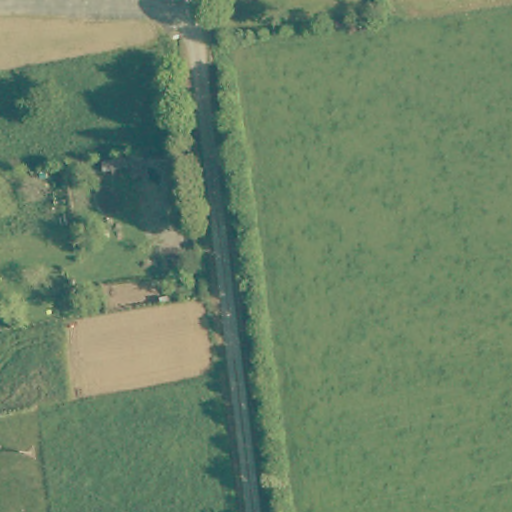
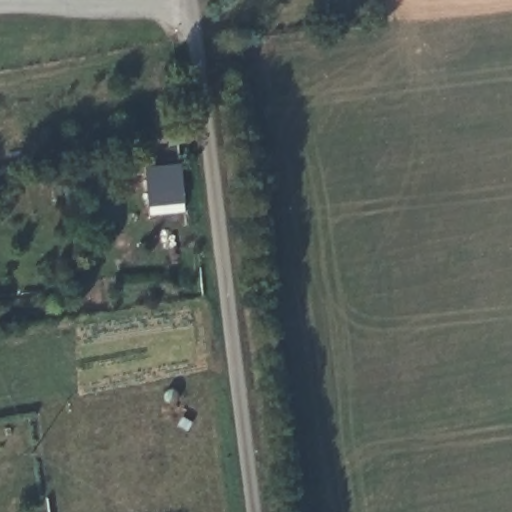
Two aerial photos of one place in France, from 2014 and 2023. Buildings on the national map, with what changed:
new [(184,203),(184,212),(149,215),(147,207),(142,168),(180,164),(184,203)]

